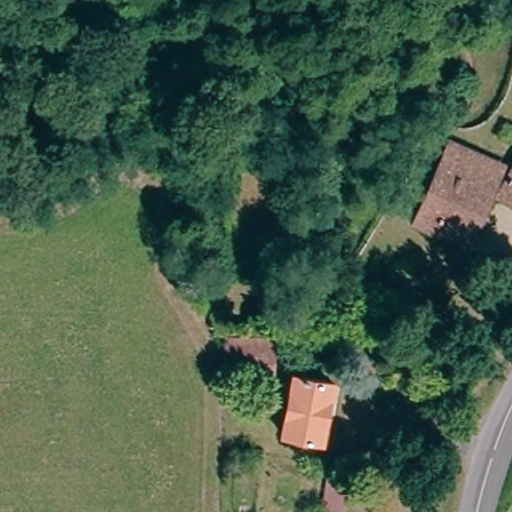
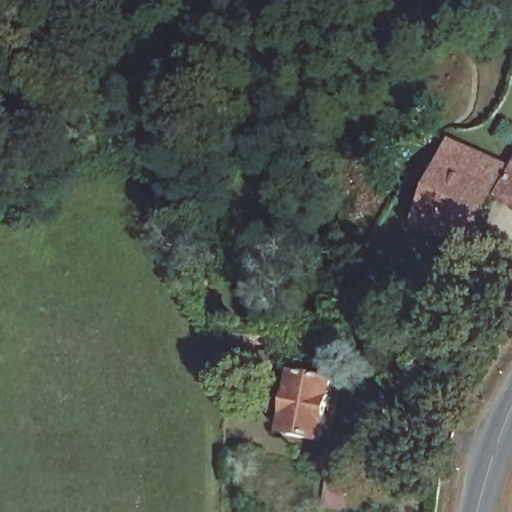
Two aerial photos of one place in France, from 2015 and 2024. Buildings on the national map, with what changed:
unchanged [(465,161),(470,149),(495,157),(490,172),(494,175),(466,240),(426,225),(415,218),(444,151),(465,161)]
unchanged [(512,166),(512,203),(497,196),(512,166)]
unchanged [(428,318),(389,302),(405,253),(413,250),(449,265),(428,318)]
unchanged [(270,341),(270,375),(225,375),(225,342),(270,341)]
unchanged [(286,433),(296,376),(336,386),(323,444),(289,437),(286,433)]
unchanged [(327,463),(350,466),(346,512),(320,512),(327,463)]

